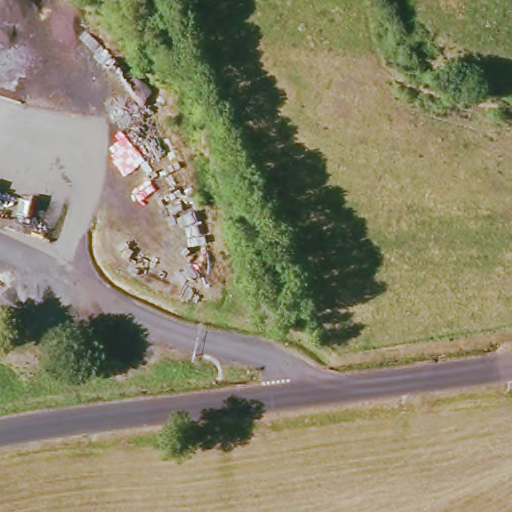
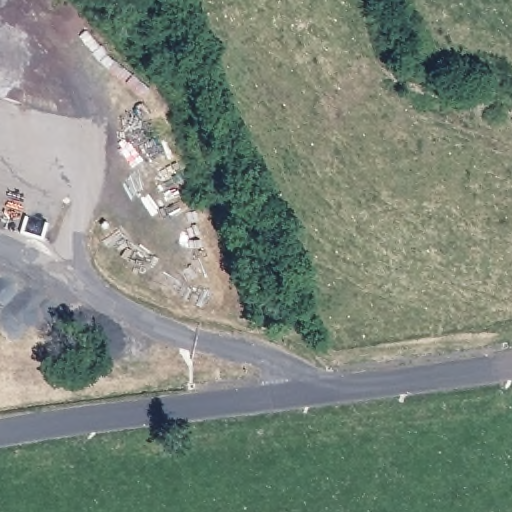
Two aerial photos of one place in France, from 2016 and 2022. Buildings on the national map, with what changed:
[]

